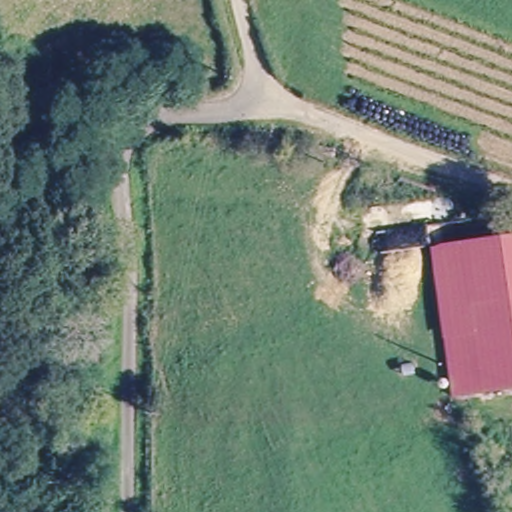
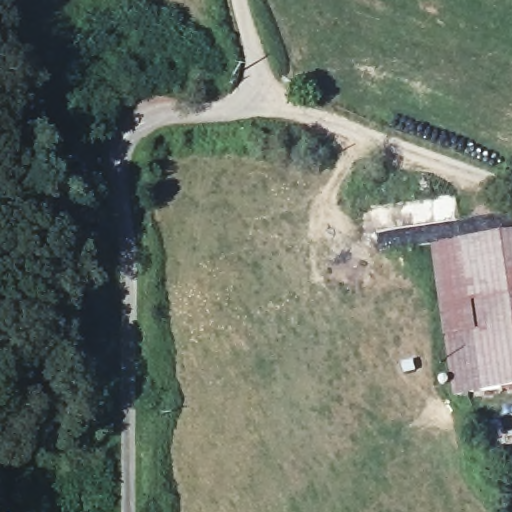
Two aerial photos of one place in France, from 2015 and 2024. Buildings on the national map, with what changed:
unchanged [(468,241),(512,236),(512,388),(458,395),(437,244),(468,241)]

